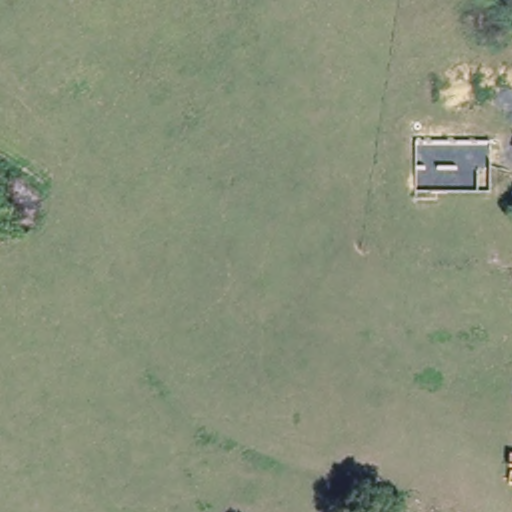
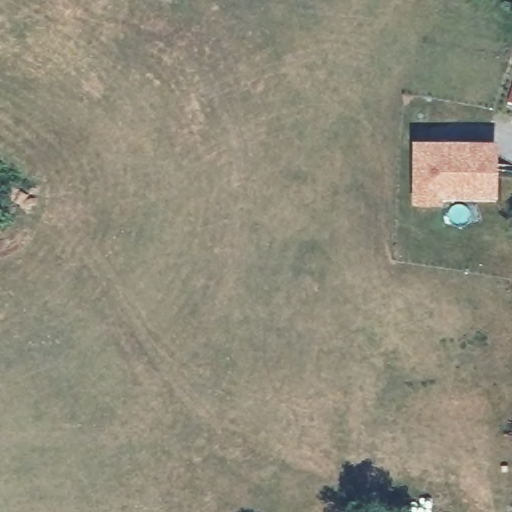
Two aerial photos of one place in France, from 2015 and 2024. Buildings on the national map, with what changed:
new [(412,137),(498,139),(496,197),(442,197),(442,204),(412,202),(412,137)]

